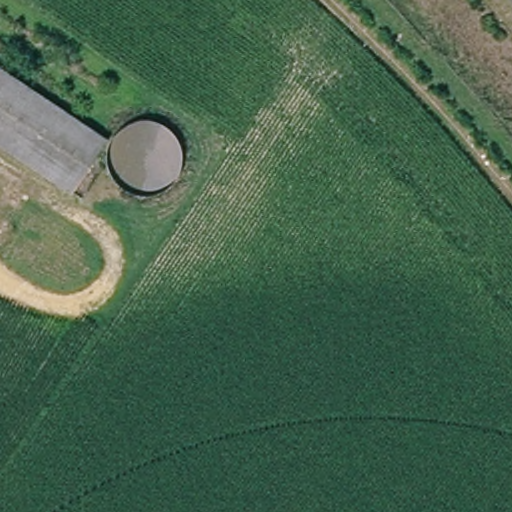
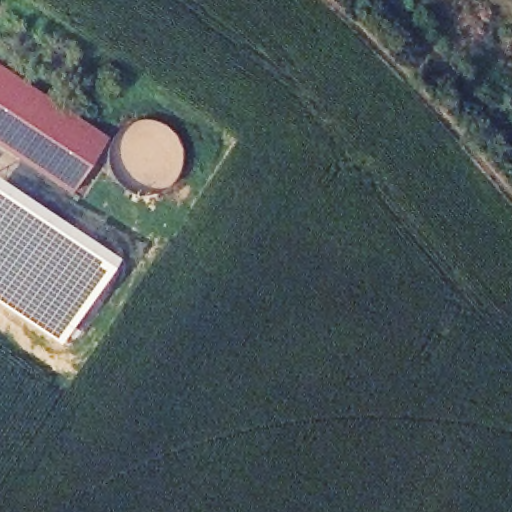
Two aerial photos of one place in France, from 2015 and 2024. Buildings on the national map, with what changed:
unchanged [(71,193),(0,145),(0,70),(106,141),(71,193)]
new [(54,343),(0,307),(0,182),(99,249),(105,267),(54,343)]

